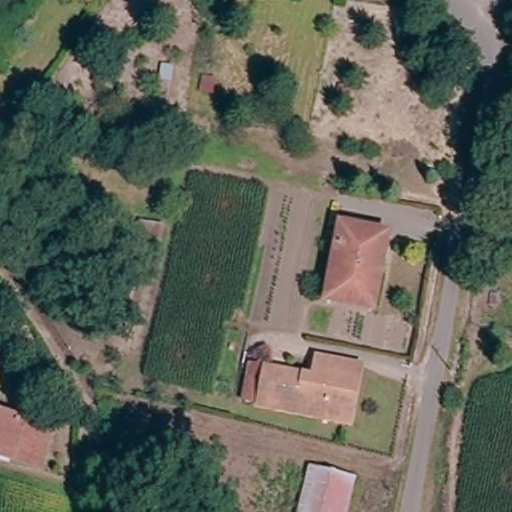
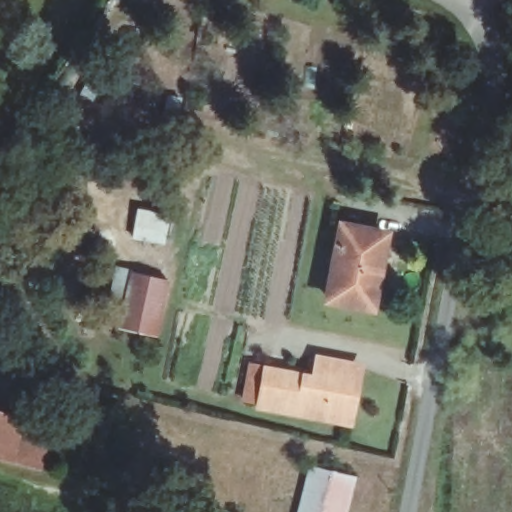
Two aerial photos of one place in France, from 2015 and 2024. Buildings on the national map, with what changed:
unchanged [(343,224),(391,233),(377,308),(328,298),(343,224)]
new [(119,326),(130,271),(170,279),(157,333),(119,326)]
unchanged [(314,379),(316,370),(317,361),(335,364),(356,368),(350,398),(353,398),(350,419),(317,413),(317,417),(254,405),(261,369),(307,378),(314,379)]
unchanged [(0,457),(0,412),(20,417),(9,459),(0,457)]
unchanged [(9,459),(20,417),(50,425),(40,467),(9,459)]
unchanged [(356,477),(347,512),(297,512),(309,465),(356,477)]

